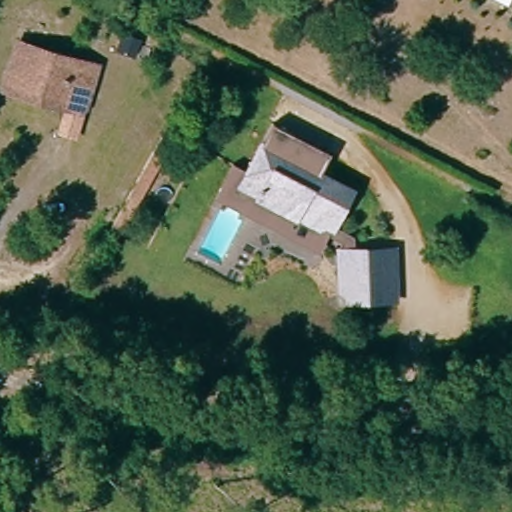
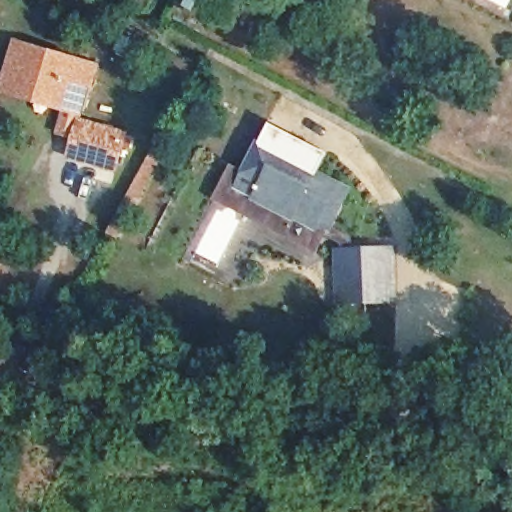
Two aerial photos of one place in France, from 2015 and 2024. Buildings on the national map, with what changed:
unchanged [(59,106),(23,94),(0,87),(0,85),(14,38),(94,64),(79,106),(70,135),(52,129),(59,106)]
new [(130,131),(117,173),(68,158),(74,137),(70,135),(76,115),(130,131)]
unchanged [(171,124),(181,129),(125,234),(113,228),(171,124)]
unchanged [(229,211),(214,204),(224,186),(235,164),(249,171),(272,128),(292,139),(288,148),(324,167),(318,178),(342,190),(319,235),(309,253),(229,211)]
unchanged [(351,195),(331,233),(349,242),(349,259),(347,259),(348,279),(349,312),(344,312),(342,278),(341,260),(340,247),(319,235),(342,190),(351,195)]
unchanged [(398,257),(399,285),(399,310),(372,311),(370,282),(369,258),(398,257)]
unchanged [(370,282),(372,311),(349,312),(348,279),(347,259),(349,259),(369,258),(370,282)]

